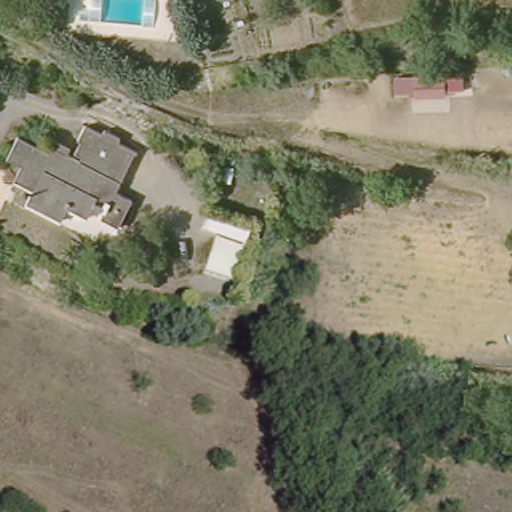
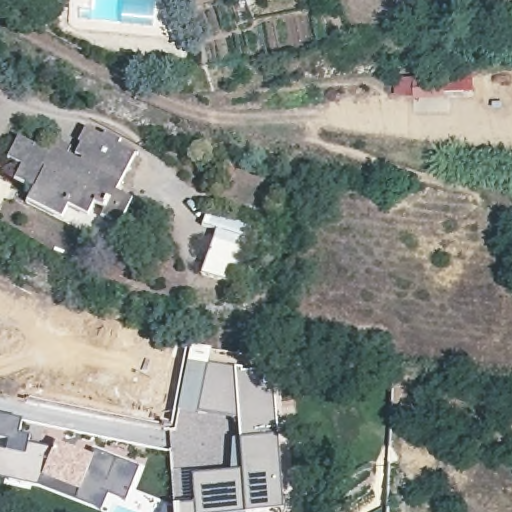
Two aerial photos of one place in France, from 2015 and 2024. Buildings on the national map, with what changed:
unchanged [(118,193),(134,201),(120,228),(103,219),(106,212),(95,207),(89,218),(70,208),(64,221),(29,203),(35,191),(17,181),(24,168),(10,160),(20,139),(51,154),(57,141),(73,149),(70,156),(79,160),(80,157),(77,156),(82,145),(80,143),(87,128),(104,136),(106,133),(122,141),(120,145),(137,153),(118,193)]
unchanged [(202,281),(218,233),(243,242),(227,290),(202,281)]
new [(189,357),(207,361),(197,412),(178,408),(189,357)]
new [(173,508),(194,506),(192,477),(236,474),(235,456),(234,442),(240,441),(239,420),(197,412),(207,361),(242,367),(242,372),(265,371),(265,386),(270,385),(275,385),(279,439),(281,469),(284,512),(247,512),(247,506),(195,510),(196,512),(173,512),(173,508)]
new [(39,487),(42,481),(30,479),(28,486),(10,482),(0,480),(0,449),(7,451),(10,441),(0,438),(0,414),(24,419),(20,434),(30,436),(29,443),(55,449),(57,442),(94,456),(97,450),(140,468),(131,493),(127,503),(104,494),(97,511),(39,487)]
new [(385,507),(386,509),(387,512),(378,512),(385,507)]

